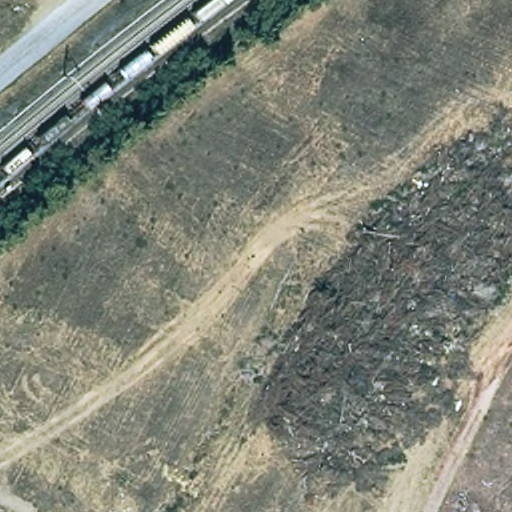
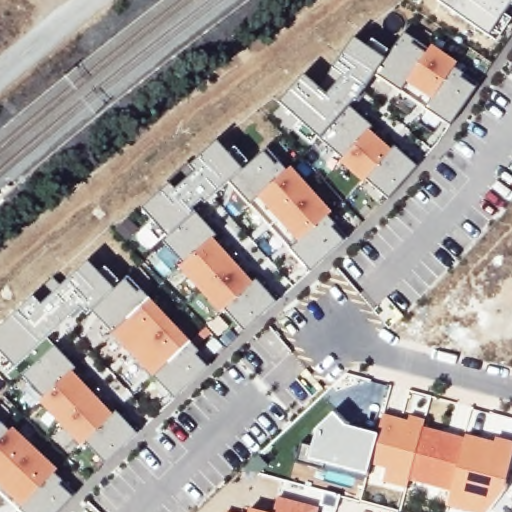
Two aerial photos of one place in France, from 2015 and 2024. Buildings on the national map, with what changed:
new [(502,16),(509,21),(493,42),(487,36),(436,1),(436,0),(512,0),(512,7),(510,5),(502,16)]
new [(459,78),(473,87),(448,124),(425,109),(400,92),(372,75),(349,106),(371,126),(369,129),(389,147),(391,145),(415,165),(386,199),(364,179),(362,181),(339,162),(341,159),(318,139),(312,145),(299,133),(292,126),(297,121),(276,102),(300,74),(326,96),(342,77),(330,68),(350,38),(361,46),(367,38),(388,53),(402,32),(426,49),(430,45),(455,62),(453,67),(462,73),(459,78)]
new [(331,228),(342,240),(308,270),(289,249),(247,204),(226,183),(202,203),(200,200),(191,208),(194,213),(216,236),(212,240),(250,281),(254,278),(275,301),(242,330),(223,309),(219,313),(179,268),(182,264),(160,240),(158,242),(146,227),(154,221),(141,205),(168,184),(165,180),(186,162),(189,165),(217,141),(227,152),(234,147),(247,163),(262,151),(275,164),(278,161),(286,170),(289,166),(330,213),(326,216),(335,224),(331,228)]
new [(194,356),(205,367),(172,398),(151,376),(110,332),(90,310),(84,316),(76,308),(12,365),(5,372),(0,367),(0,327),(32,297),(52,279),(59,288),(88,262),(98,273),(104,266),(118,282),(122,280),(136,294),(140,290),(148,298),(189,342),(198,351),(194,356)]
new [(103,463),(83,442),(79,446),(37,403),(41,398),(21,376),(53,346),(74,368),(71,371),(112,415),(115,412),(135,432),(103,463)]
new [(450,491),(407,480),(405,487),(382,482),(385,468),(369,464),(383,413),(407,420),(409,415),(423,419),(422,427),(464,438),(450,491)]
new [(69,497),(55,512),(19,512),(16,508),(17,505),(0,489),(0,424),(9,432),(12,427),(55,470),(52,473),(61,482),(57,485),(69,497)]
new [(302,500),(303,496),(300,495),(303,484),(340,495),(335,512),(327,512),(319,509),(318,512),(272,512),(278,494),(302,500)]
new [(270,512),(247,512),(248,507),(270,512)]
new [(229,512),(225,512),(225,511),(229,512)]

